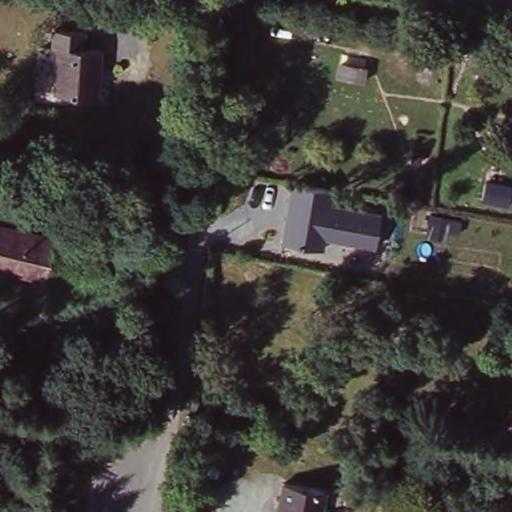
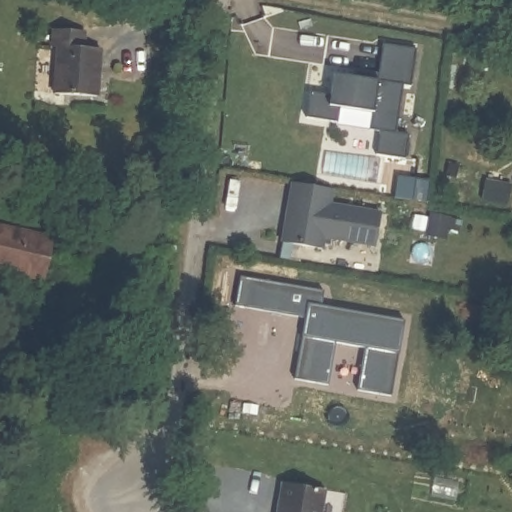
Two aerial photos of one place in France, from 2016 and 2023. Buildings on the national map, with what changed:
unchanged [(84,35),(78,56),(94,59),(87,103),(45,95),(54,53),(47,51),(51,29),(84,35)]
new [(409,86),(401,84),(394,134),(407,137),(405,159),(377,155),(382,132),(369,129),(372,113),(340,107),(337,123),(308,118),(311,93),(331,99),(335,75),(348,78),(349,69),(379,74),(383,45),(416,50),(409,86)]
new [(399,179),(426,182),(424,202),(397,198),(399,179)]
new [(512,182),(512,188),(510,208),(482,205),(485,179),(512,182)]
unchanged [(330,195),(327,209),(381,219),(376,252),(324,244),(321,254),(284,247),(291,191),(330,195)]
unchanged [(57,241),(47,285),(0,276),(0,220),(57,241)]
new [(241,275),(323,292),(320,307),(404,324),(389,399),(355,393),(364,350),(334,344),(326,387),(293,379),(305,319),(234,305),(241,275)]
new [(283,480),(326,492),(322,512),(278,512),(283,480)]
demolished [(323,494),(319,512),(273,512),(279,484),(323,494)]

